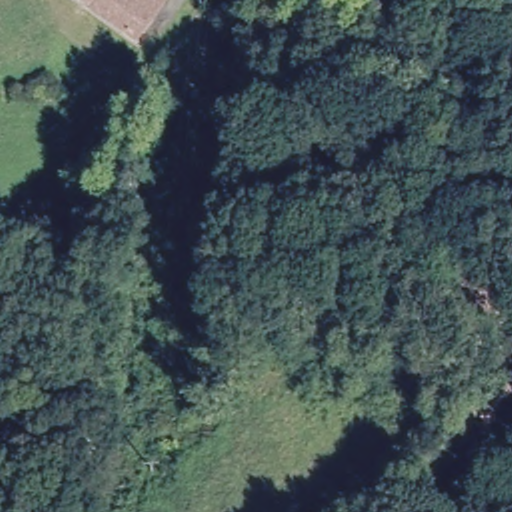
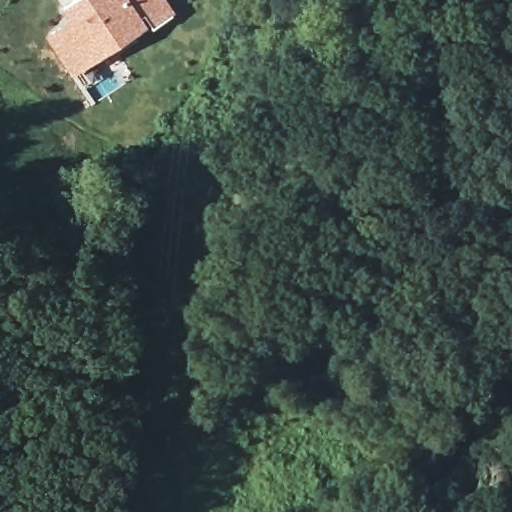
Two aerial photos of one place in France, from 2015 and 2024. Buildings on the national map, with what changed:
new [(145,13),(139,18),(145,27),(71,77),(45,36),(70,20),(61,9),(75,0),(166,0),(175,12),(154,27),(145,13)]
demolished [(166,0),(142,37),(82,0),(166,0)]

